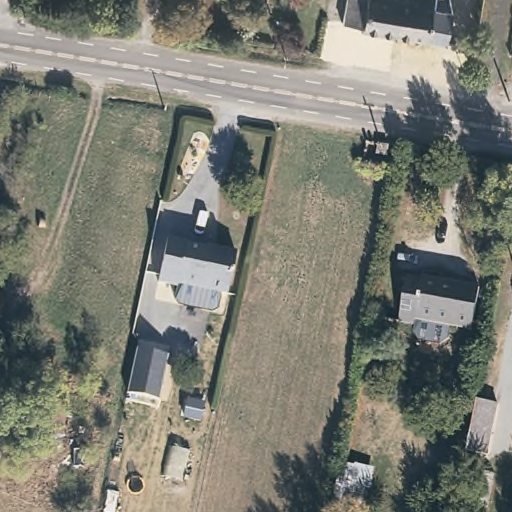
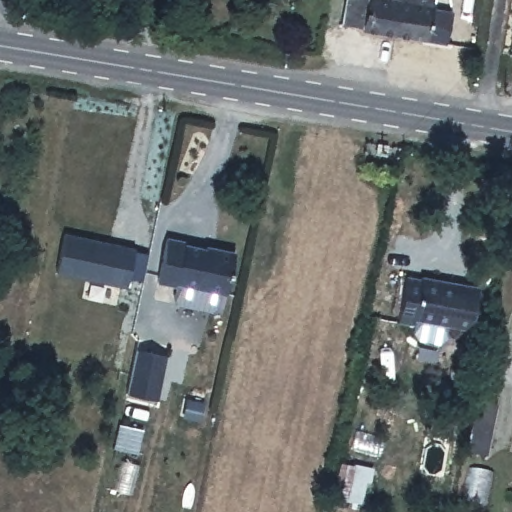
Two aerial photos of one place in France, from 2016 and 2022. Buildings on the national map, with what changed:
unchanged [(355,26),(356,22),(335,19),(337,0),(393,0),(388,31),(355,26)]
unchanged [(429,4),(436,6),(432,38),(388,31),(393,0),(429,0),(429,4)]
new [(70,233),(140,248),(131,287),(61,272),(70,233)]
unchanged [(212,248),(213,245),(235,250),(226,292),(210,289),(210,287),(171,281),(171,284),(156,281),(166,236),(189,240),(188,243),(212,248)]
unchanged [(480,287),(471,331),(414,320),(413,325),(396,322),(405,278),(423,280),(423,276),(480,287)]
unchanged [(0,307),(0,304),(1,304),(0,307)]
unchanged [(171,354),(161,399),(129,392),(138,347),(171,354)]
unchanged [(501,404),(491,454),(468,451),(479,400),(501,404)]

